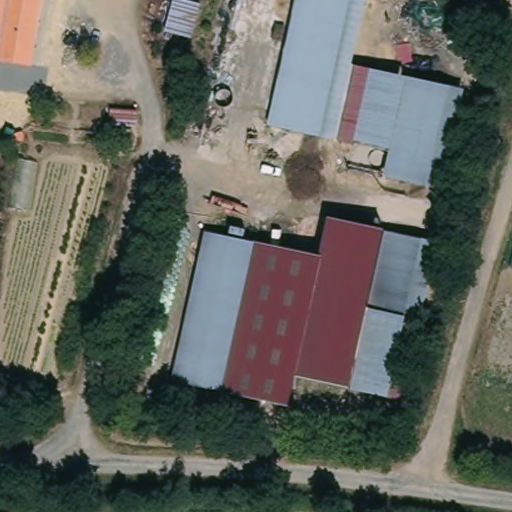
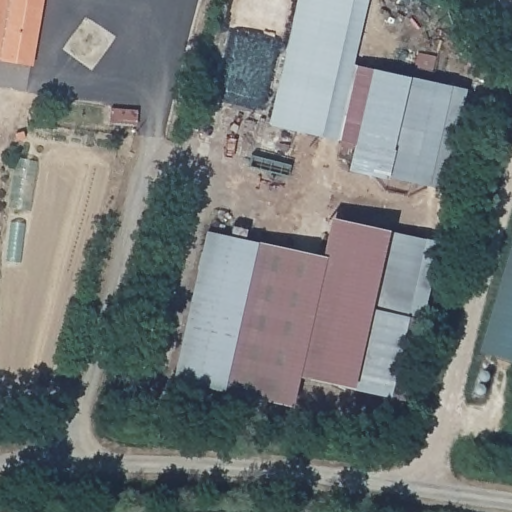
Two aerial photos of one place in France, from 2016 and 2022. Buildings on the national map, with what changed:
unchanged [(32,67),(0,62),(0,0),(43,0),(32,67)]
unchanged [(195,37),(168,32),(176,0),(189,0),(204,4),(195,37)]
unchanged [(329,135),(281,124),(307,0),(358,0),(329,135)]
unchanged [(385,174),(390,151),(329,135),(345,62),(419,77),(397,176),(385,174)]
unchanged [(436,185),(397,176),(419,77),(458,87),(436,185)]
unchanged [(301,252),(320,258),(327,221),(383,231),(349,387),(296,377),(287,407),(268,400),(301,252)]
unchanged [(414,322),(378,313),(396,235),(432,243),(414,322)]
unchanged [(228,393),(181,382),(213,236),(260,247),(228,393)]
unchanged [(254,399),(228,393),(260,247),(286,249),(254,399)]
unchanged [(268,400),(254,399),(286,249),(301,252),(268,400)]
new [(512,256),(512,362),(484,353),(512,256)]

